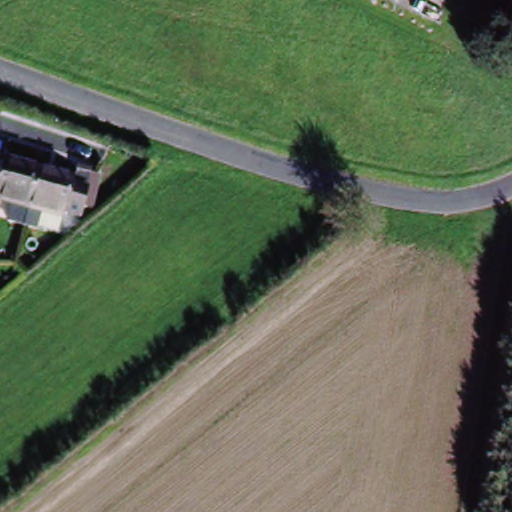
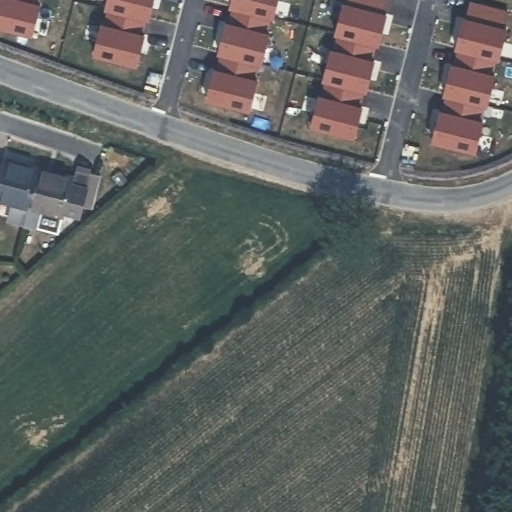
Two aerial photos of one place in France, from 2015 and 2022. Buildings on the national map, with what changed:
new [(34,5),(36,6),(29,37),(0,30),(0,0),(35,0),(34,5)]
new [(104,0),(150,0),(145,20),(102,9),(104,0)]
new [(269,19),(226,8),(228,0),(274,0),(269,19)]
new [(331,35),(339,5),(342,6),(343,0),(383,0),(379,15),(382,16),(374,46),(334,35),(331,35)]
new [(452,48),(460,17),(463,18),(467,2),(504,12),(500,28),(503,28),(495,60),(455,49),(452,48)]
new [(214,54),(222,24),(225,25),(229,9),(266,18),(262,35),(265,35),(257,65),(217,55),(214,54)]
new [(142,20),(138,36),(141,37),(133,68),(90,57),(98,26),(100,26),(105,10),(142,20)]
new [(319,81),(327,51),(330,52),(334,36),(371,45),(367,61),(370,62),(362,92),(322,82),(319,81)]
new [(492,59),(488,75),(491,76),(483,107),(440,96),(448,65),(451,65),(455,49),(492,59)]
new [(254,65),(250,81),(253,82),(245,113),(202,101),(210,70),(213,71),(217,55),(254,65)]
new [(359,91),(355,108),(358,108),(350,139),(307,128),(315,97),(318,98),(322,82),(359,91)]
new [(480,106),(476,122),(479,123),(471,154),(428,143),(436,112),(439,113),(443,96),(480,106)]
unchanged [(24,213),(4,208),(6,203),(0,202),(0,173),(11,175),(13,167),(49,177),(34,233),(20,230),(24,213)]
unchanged [(75,222),(69,242),(34,233),(49,177),(85,186),(87,178),(101,181),(98,195),(91,225),(75,222)]

